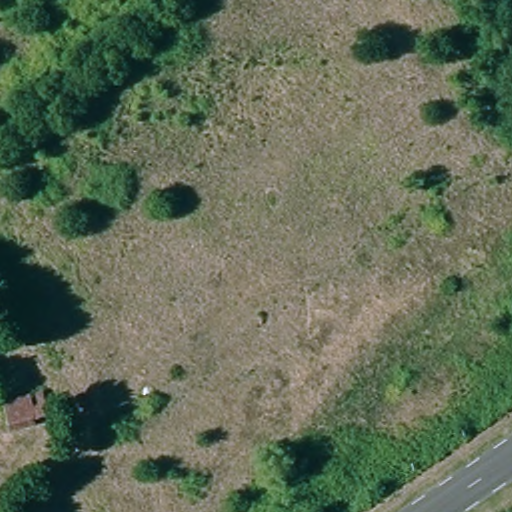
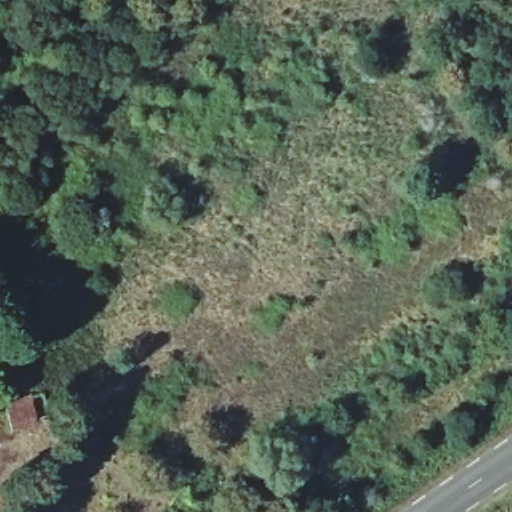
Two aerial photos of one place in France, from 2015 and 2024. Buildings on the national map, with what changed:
unchanged [(40,392),(50,428),(8,437),(0,408),(0,402),(40,392)]

